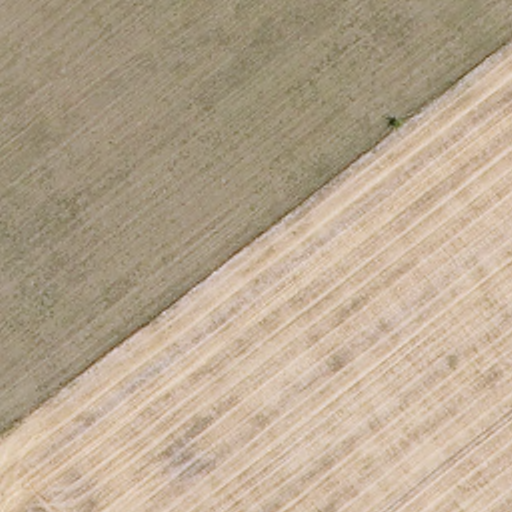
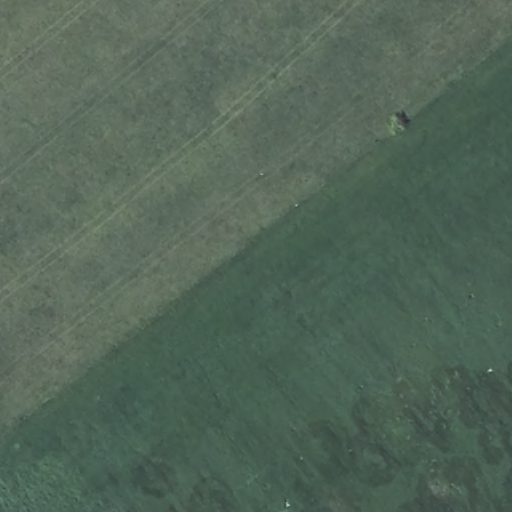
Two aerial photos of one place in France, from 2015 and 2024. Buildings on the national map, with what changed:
[]

